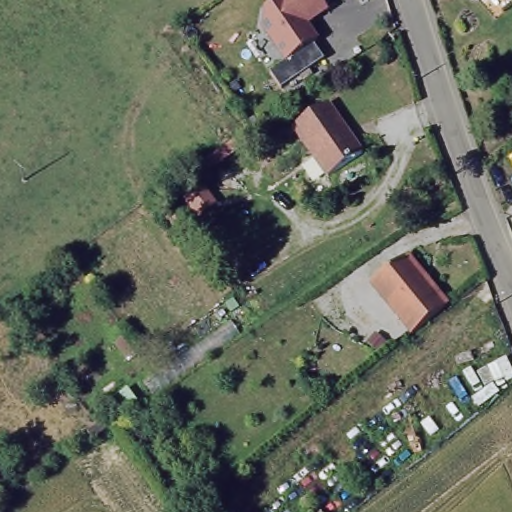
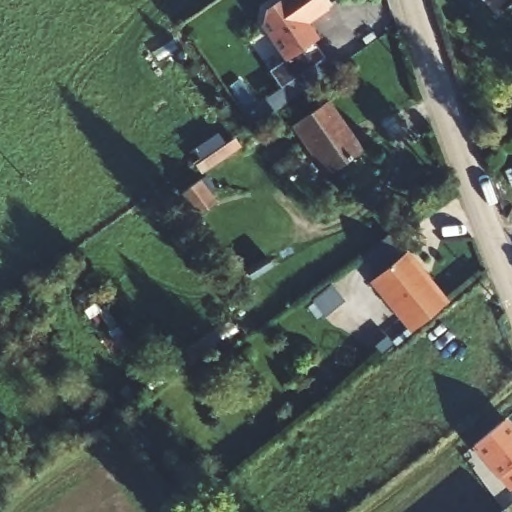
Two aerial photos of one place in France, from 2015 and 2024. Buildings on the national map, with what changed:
unchanged [(269,0),(321,0),(315,4),(316,7),(310,11),(320,29),(316,31),(326,47),(281,75),(270,57),(287,46),(267,12),(269,0)]
unchanged [(327,101),(360,152),(326,176),(292,125),(327,101)]
unchanged [(405,252),(445,303),(411,331),(372,280),(405,252)]
new [(471,447),(505,418),(512,426),(512,489),(508,492),(471,447)]
new [(503,512),(503,511),(504,512),(503,512)]

